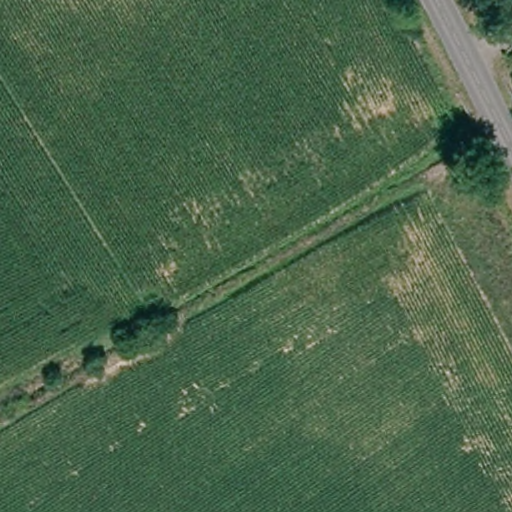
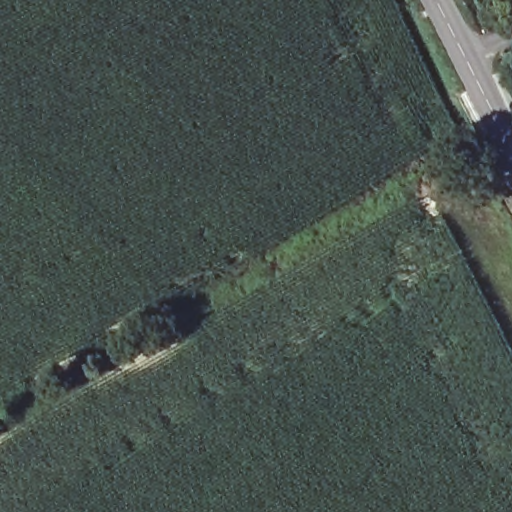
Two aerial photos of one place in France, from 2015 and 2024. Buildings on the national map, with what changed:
[]

